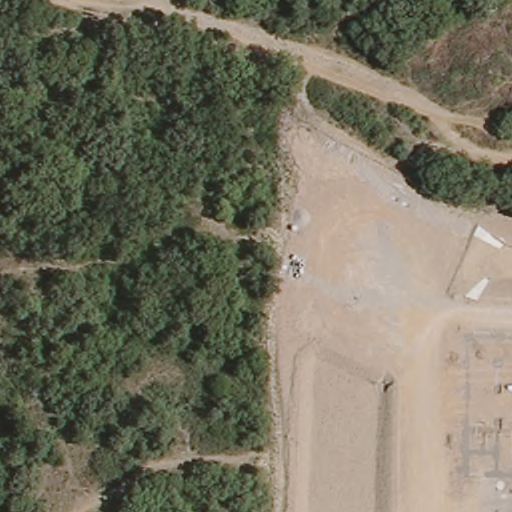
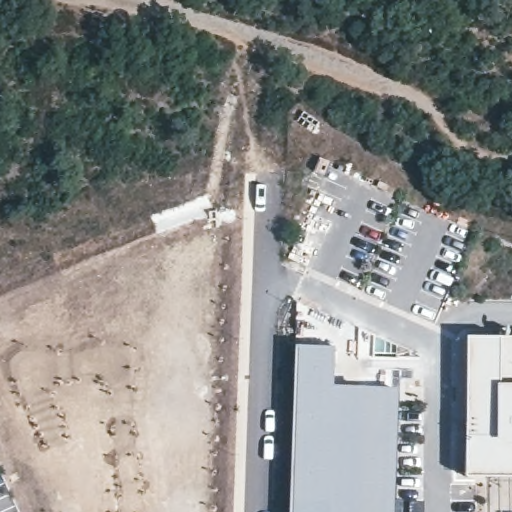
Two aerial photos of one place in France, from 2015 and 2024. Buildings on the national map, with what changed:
unchanged [(463,478),(463,340),(497,340),(512,341),(512,478),(463,478)]
new [(332,345),(332,383),(397,386),(395,498),(395,512),(287,512),(292,343),(332,345)]

